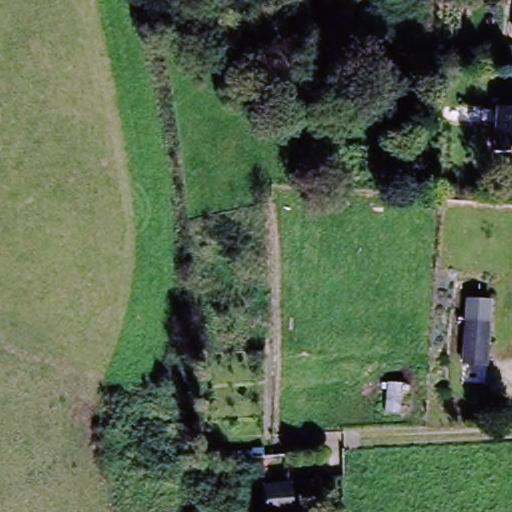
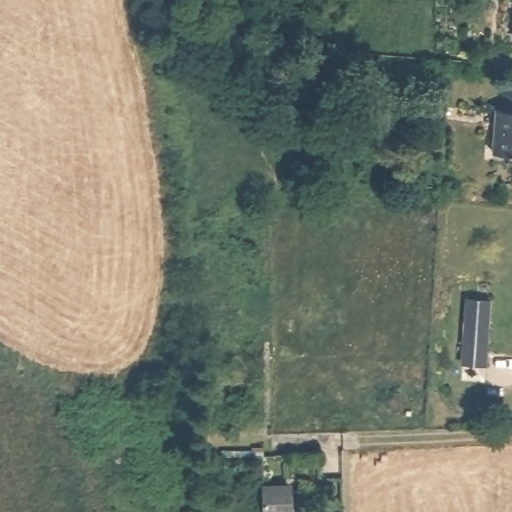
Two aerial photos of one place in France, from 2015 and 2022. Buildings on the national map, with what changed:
unchanged [(498,114),(500,109),(501,84),(512,84),(512,158),(490,156),(491,145),(492,129),(493,115),(493,113),(498,114)]
unchanged [(467,296),(490,297),(487,361),(465,360),(467,296)]
unchanged [(262,490),(287,488),(288,512),(263,512),(262,490)]

